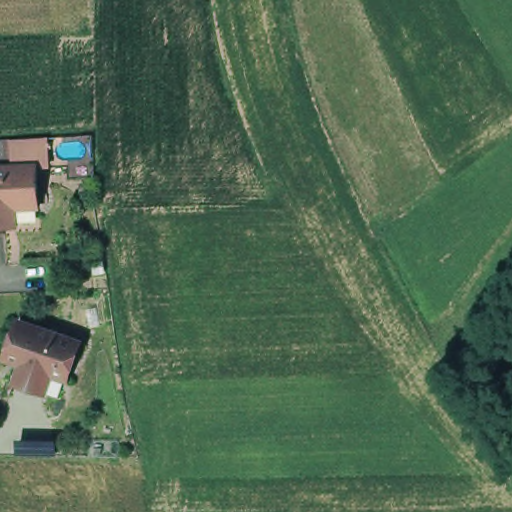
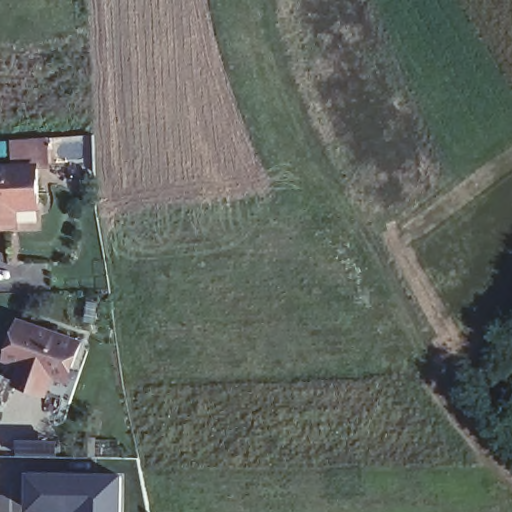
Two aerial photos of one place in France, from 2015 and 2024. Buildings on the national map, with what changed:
unchanged [(0,222),(0,160),(32,159),(33,202),(11,202),(11,222),(0,222)]
unchanged [(52,374),(46,390),(45,393),(15,381),(20,363),(5,358),(7,351),(19,319),(80,341),(72,366),(67,379),(52,374)]
new [(57,439),(56,456),(15,456),(15,438),(57,439)]
new [(100,470),(124,472),(122,512),(27,512),(27,469),(100,470)]

